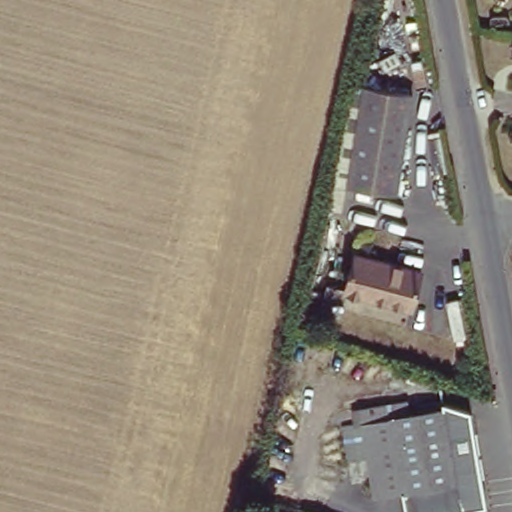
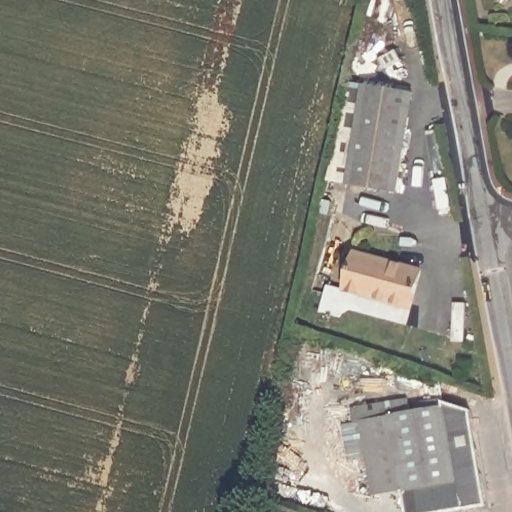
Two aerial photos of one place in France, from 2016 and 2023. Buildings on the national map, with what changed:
unchanged [(416,90),(397,194),(348,184),(367,82),(416,90)]
unchanged [(421,271),(412,313),(351,299),(360,258),(421,271)]
unchanged [(445,403),(470,410),(485,506),(452,512),(409,512),(405,492),(375,496),(362,425),(445,403)]

